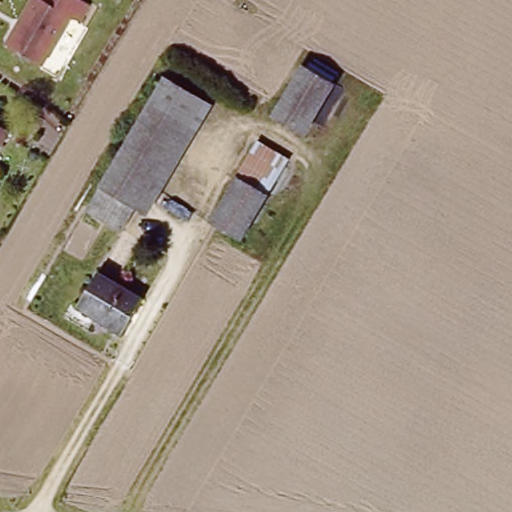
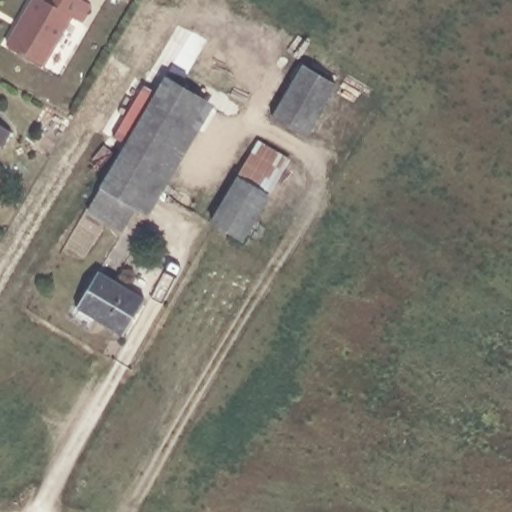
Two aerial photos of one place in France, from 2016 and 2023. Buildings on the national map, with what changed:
unchanged [(43,66),(5,42),(30,0),(81,0),(90,5),(80,21),(73,17),(43,66)]
unchanged [(311,133),(280,115),(311,62),(343,81),(311,133)]
unchanged [(205,97),(218,105),(165,191),(153,184),(152,183),(116,161),(169,75),(205,97)]
unchanged [(1,148),(0,147),(0,128),(10,134),(1,148)]
unchanged [(244,174),(265,140),(295,158),(275,193),(244,174)]
unchanged [(152,183),(153,184),(125,227),(91,205),(116,161),(152,183)]
unchanged [(249,237),(217,218),(244,174),(275,193),(249,237)]
unchanged [(144,300),(123,335),(79,309),(100,274),(144,300)]

